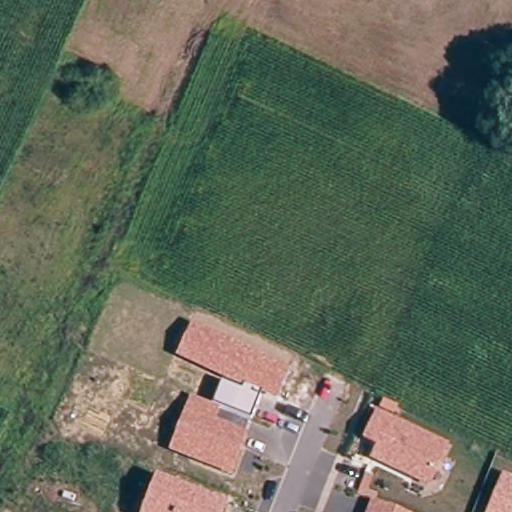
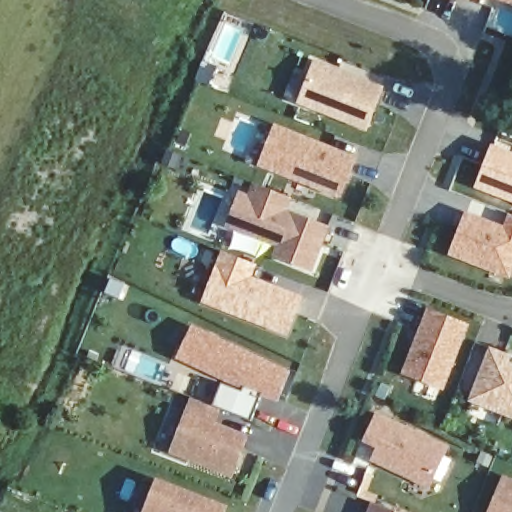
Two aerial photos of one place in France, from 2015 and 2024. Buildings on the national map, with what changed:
new [(474,0),(484,0),(482,3),(474,0)]
new [(512,0),(512,8),(492,0),(512,0)]
new [(384,88),(367,131),(298,106),(315,59),(384,88)]
new [(358,158),(342,200),(257,167),(274,124),(358,158)]
new [(512,204),(473,190),(492,144),(512,152),(512,204)]
new [(249,196),(253,185),(292,199),(287,211),(330,227),(312,273),(270,258),(274,247),(226,229),(241,192),(249,196)]
new [(510,215),(512,216),(512,276),(510,281),(449,257),(465,211),(505,225),(510,215)]
new [(220,248),(257,264),(253,274),(304,294),(287,338),(198,303),(220,248)]
new [(469,326),(445,391),(402,375),(426,310),(469,326)]
unchanged [(214,405),(223,381),(176,359),(193,324),(291,369),(277,402),(261,395),(251,421),(222,409),(216,423),(247,435),(231,476),(168,452),(190,397),(214,405)]
new [(512,360),(511,362),(512,363),(512,418),(467,402),(488,349),(512,356),(512,360)]
unchanged [(399,407),(394,417),(449,445),(430,487),(369,460),(375,446),(362,440),(383,400),(399,407)]
unchanged [(512,512),(487,512),(503,473),(512,477),(512,512)]
unchanged [(227,504),(225,512),(142,512),(157,476),(227,504)]
unchanged [(376,505),(393,512),(374,512),(376,505)]

